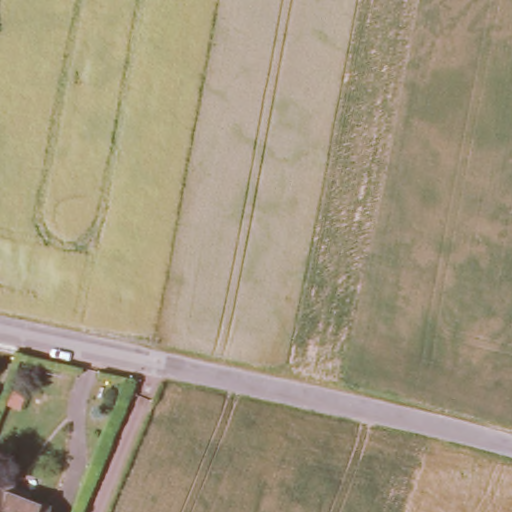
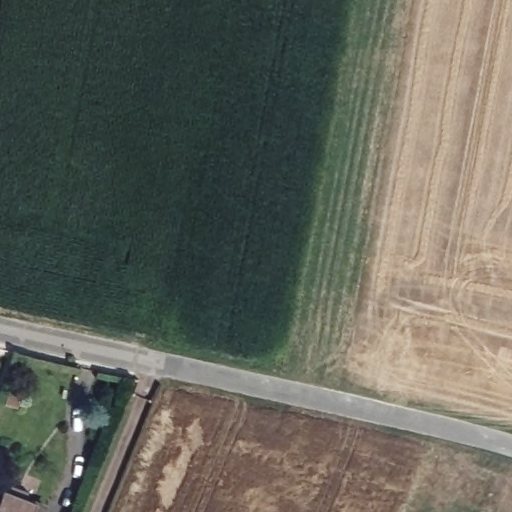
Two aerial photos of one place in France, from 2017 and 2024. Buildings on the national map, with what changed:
unchanged [(14,485),(11,496),(40,507),(39,512),(0,512),(0,480),(14,485)]

